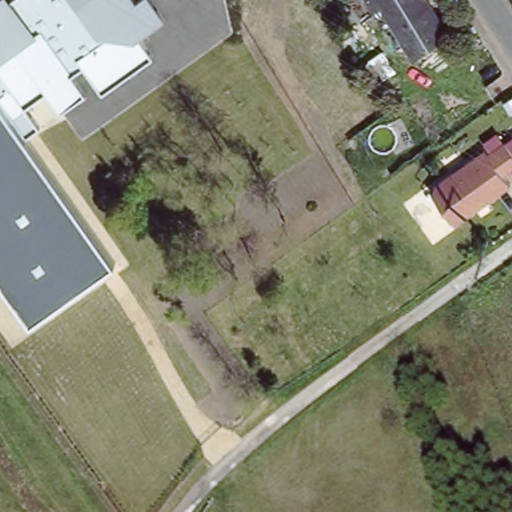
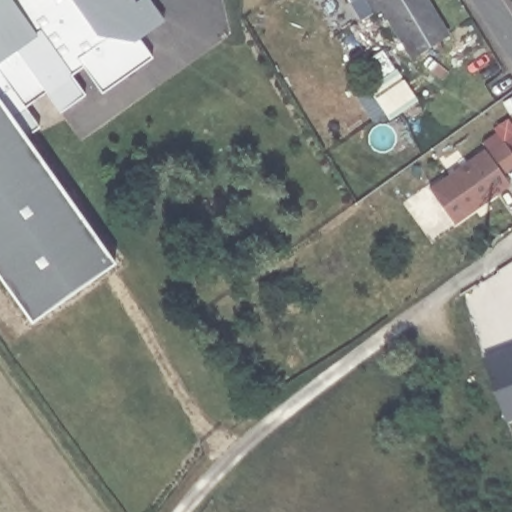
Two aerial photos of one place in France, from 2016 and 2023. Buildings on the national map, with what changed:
unchanged [(0,0),(135,0),(137,3),(141,0),(150,0),(164,21),(140,39),(152,56),(102,93),(83,66),(72,75),(86,96),(61,113),(47,93),(26,106),(40,128),(28,138),(115,262),(31,321),(0,277),(0,0)]
unchanged [(350,6),(347,3),(346,0),(360,0),(352,6),(350,6)]
unchanged [(425,54),(415,60),(399,36),(383,14),(377,18),(365,0),(423,0),(448,39),(425,54)]
unchanged [(450,226),(439,209),(427,192),(483,153),(486,157),(503,146),(512,158),(512,170),(500,178),(507,189),(457,221),(450,226)]
new [(510,421),(485,358),(512,348),(512,420),(510,421)]

